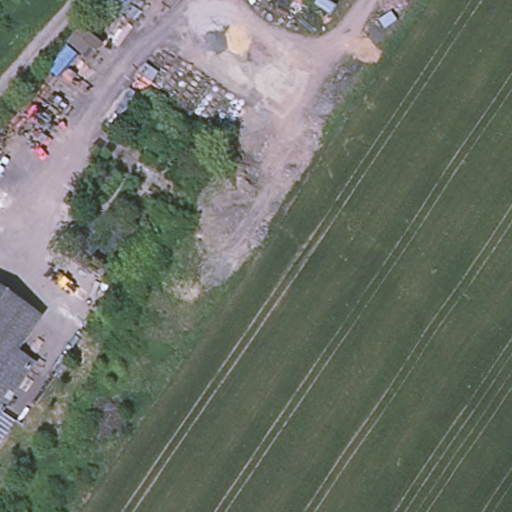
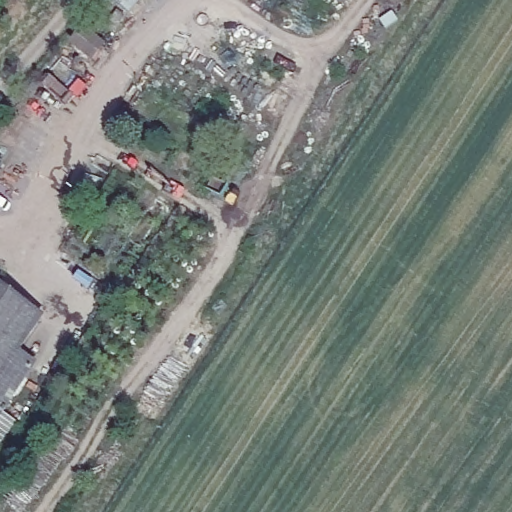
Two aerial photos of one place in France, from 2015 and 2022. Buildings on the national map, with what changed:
unchanged [(57,325),(0,419),(0,291),(57,325)]

